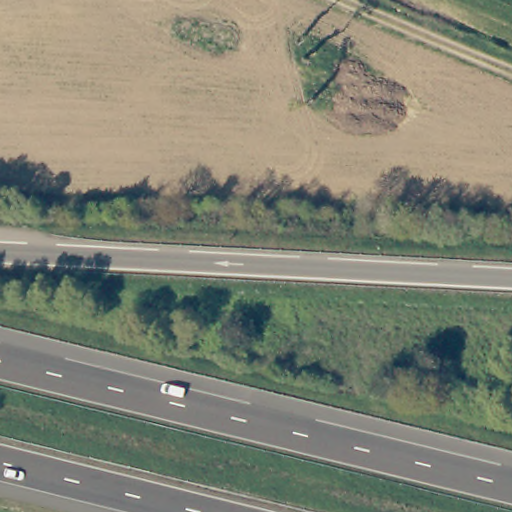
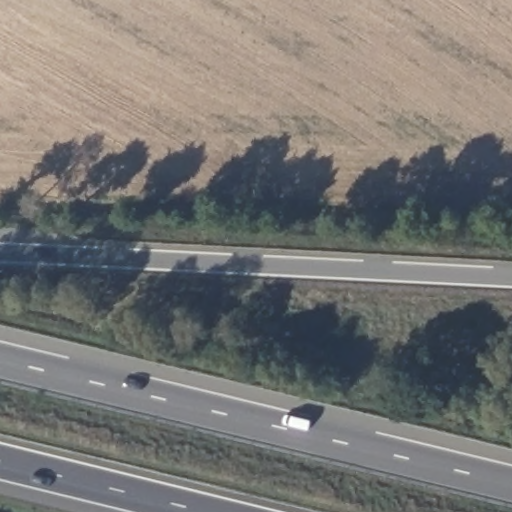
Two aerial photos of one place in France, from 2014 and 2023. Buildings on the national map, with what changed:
[]

